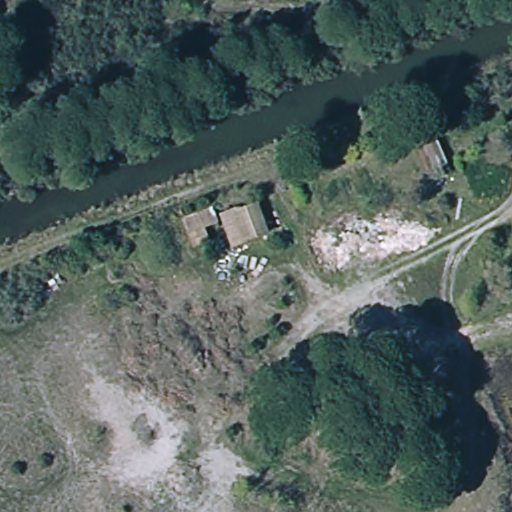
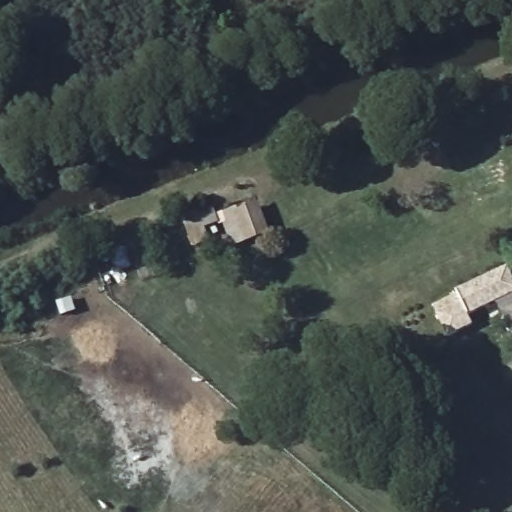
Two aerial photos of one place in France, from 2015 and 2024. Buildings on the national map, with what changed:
unchanged [(246,244),(233,210),(260,200),(273,235),(246,244)]
new [(512,279),(512,294),(467,316),(472,325),(447,338),(432,306),(506,268),(512,279)]

